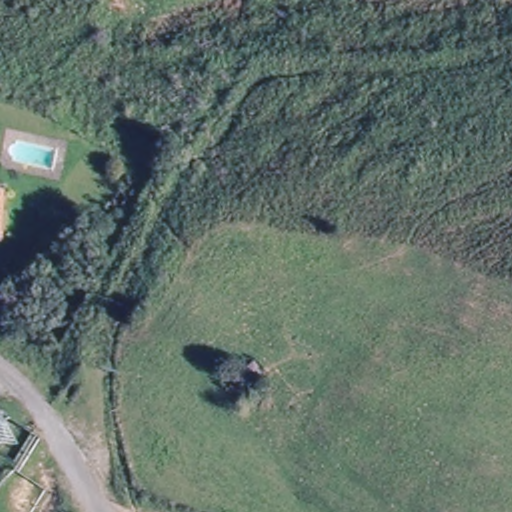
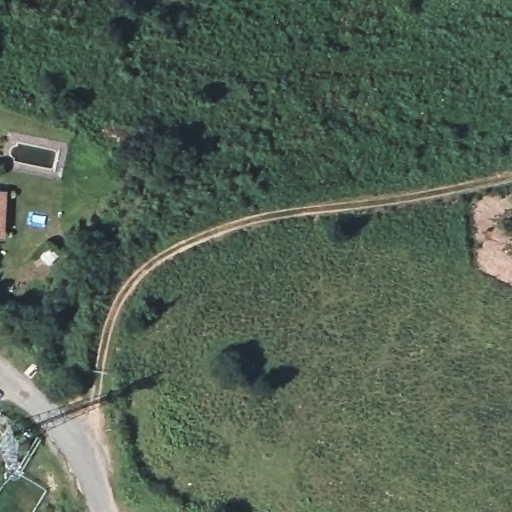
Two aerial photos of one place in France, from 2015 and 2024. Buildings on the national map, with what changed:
unchanged [(0,240),(0,192),(4,193),(4,240),(0,240)]

